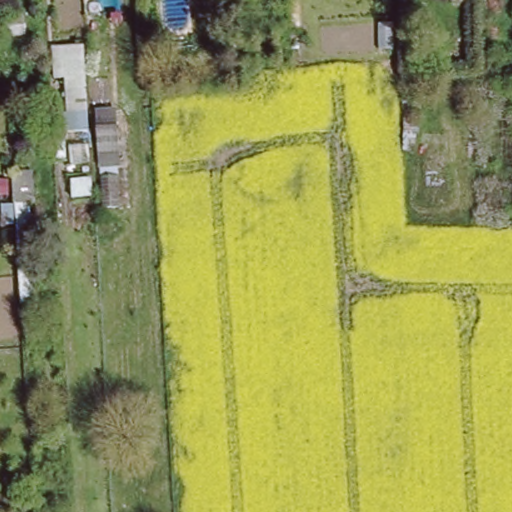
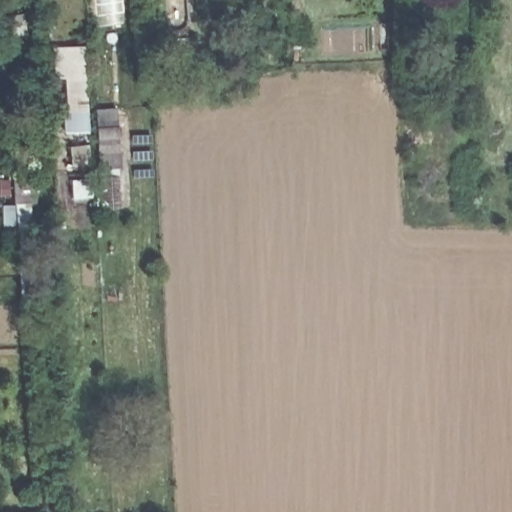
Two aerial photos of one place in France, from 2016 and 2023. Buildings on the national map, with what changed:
unchanged [(60,46),(85,44),(92,129),(72,130),(70,111),(77,110),(73,76),(63,77),(60,46)]
unchanged [(0,176),(13,175),(16,205),(12,205),(21,310),(6,312),(0,235),(0,176)]
unchanged [(79,181),(96,179),(98,199),(80,200),(79,181)]

